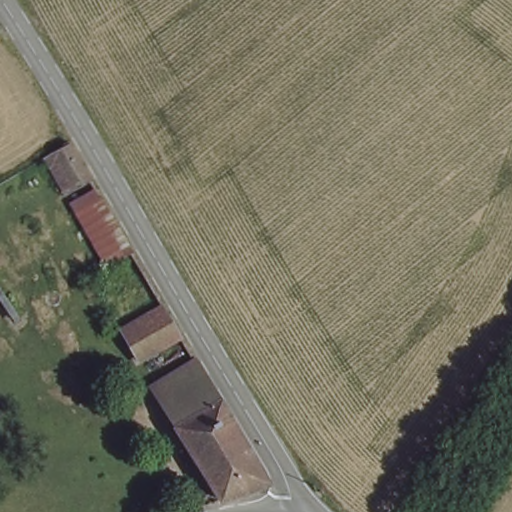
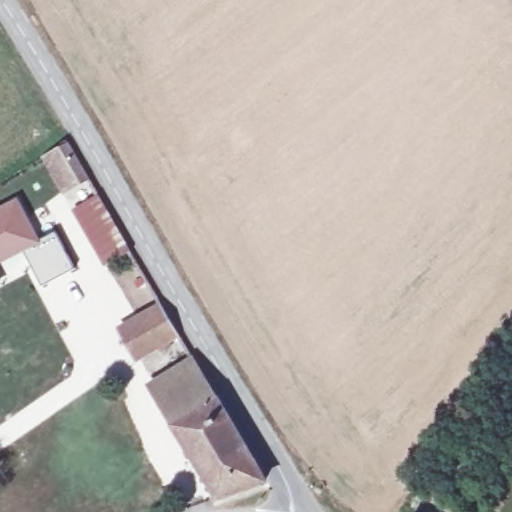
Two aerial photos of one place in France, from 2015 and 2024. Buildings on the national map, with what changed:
unchanged [(100,269),(35,161),(65,142),(127,254),(100,269)]
new [(53,234),(72,269),(38,289),(23,262),(0,274),(0,207),(17,198),(40,240),(53,234)]
new [(0,282),(3,289),(0,291),(0,282)]
unchanged [(175,337),(133,358),(117,329),(158,309),(175,337)]
unchanged [(259,482),(211,498),(148,386),(195,369),(259,482)]

